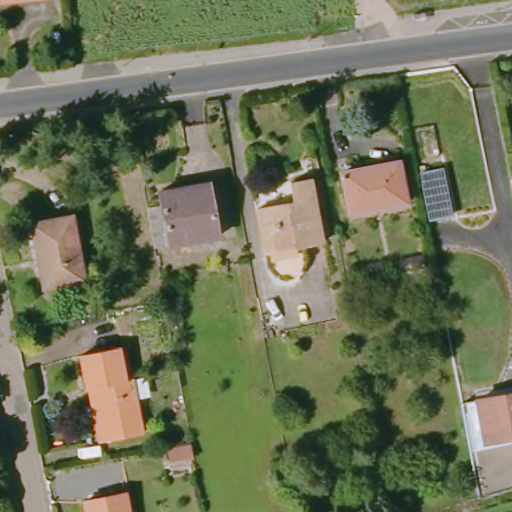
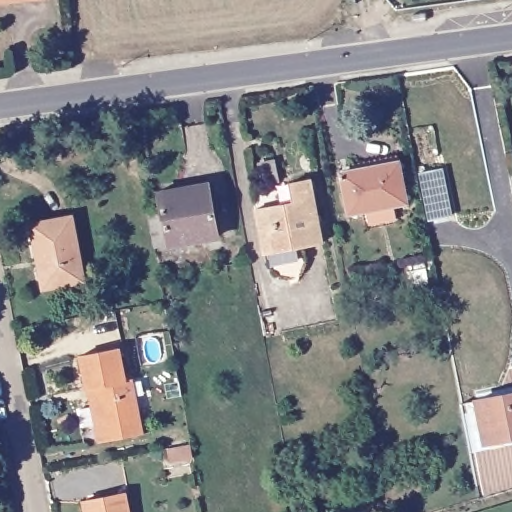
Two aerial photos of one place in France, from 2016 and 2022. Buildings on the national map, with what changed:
unchanged [(338,176),(398,165),(406,208),(345,218),(338,176)]
unchanged [(439,166),(449,220),(422,225),(412,170),(439,166)]
unchanged [(321,246),(258,258),(250,210),(287,204),(285,185),(308,176),(321,246)]
unchanged [(512,210),(511,210),(505,177),(512,176),(512,210)]
unchanged [(170,201),(167,187),(215,180),(222,235),(157,245),(150,205),(170,201)]
unchanged [(30,230),(73,223),(83,285),(41,292),(30,230)]
unchanged [(87,392),(81,393),(75,358),(113,353),(118,385),(125,383),(134,440),(96,445),(87,392)]
unchanged [(512,437),(477,441),(469,401),(512,395),(512,437)]
unchanged [(189,436),(191,451),(167,455),(164,441),(189,436)]
unchanged [(121,495),(124,512),(81,512),(80,502),(121,495)]

